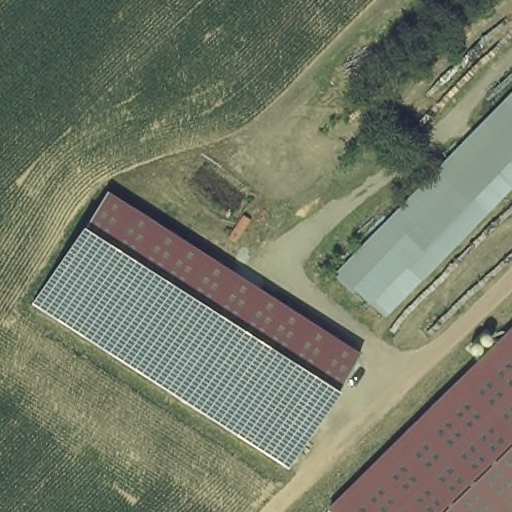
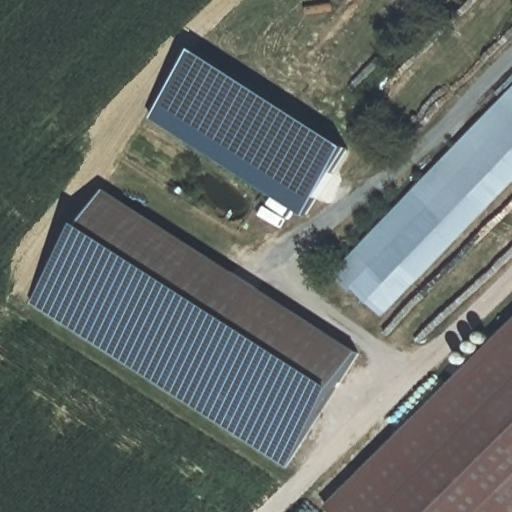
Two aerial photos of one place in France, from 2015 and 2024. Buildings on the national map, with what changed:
new [(360,149),(311,219),(159,121),(208,51),(360,149)]
unchanged [(512,94),(512,181),(382,314),(339,272),(512,94)]
unchanged [(135,370),(96,345),(74,331),(34,305),(42,292),(107,191),(129,206),(172,233),(194,248),(233,272),(360,354),(287,467),(135,370)]
unchanged [(466,348),(486,330),(495,340),(512,324),(512,512),(330,512),(326,508),(477,357),(466,348)]

